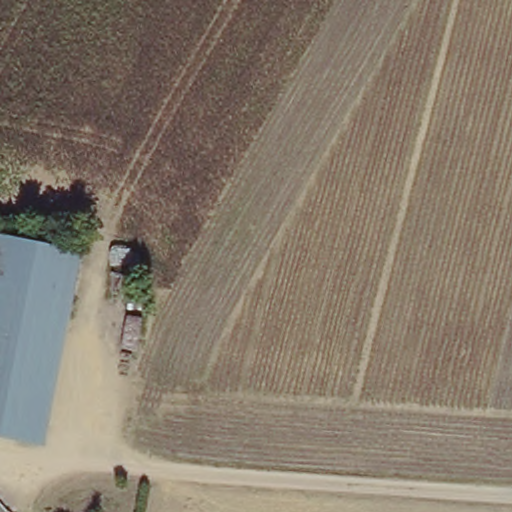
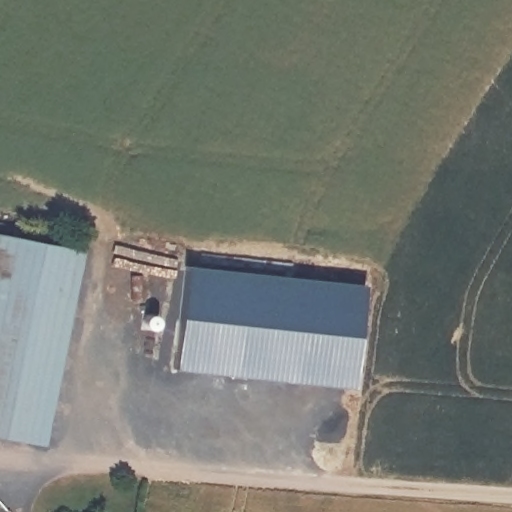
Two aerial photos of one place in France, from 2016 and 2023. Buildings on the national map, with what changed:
unchanged [(43,439),(0,431),(0,232),(78,247),(43,439)]
new [(178,262),(359,280),(349,384),(168,366),(178,262)]

